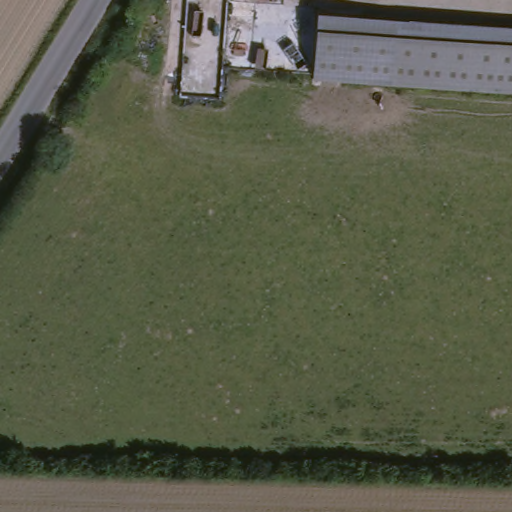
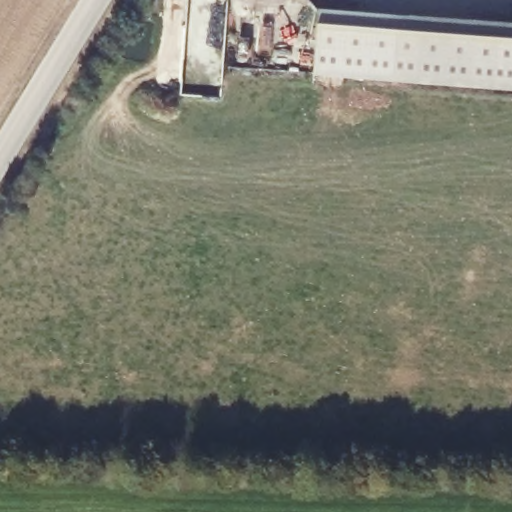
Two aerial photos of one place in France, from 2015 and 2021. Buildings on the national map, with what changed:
unchanged [(398,83),(319,78),(321,6),(402,12),(398,83)]
unchanged [(512,90),(398,83),(402,12),(512,21),(512,90)]

